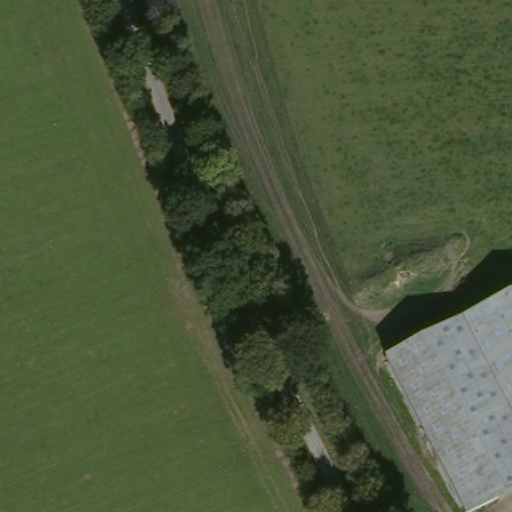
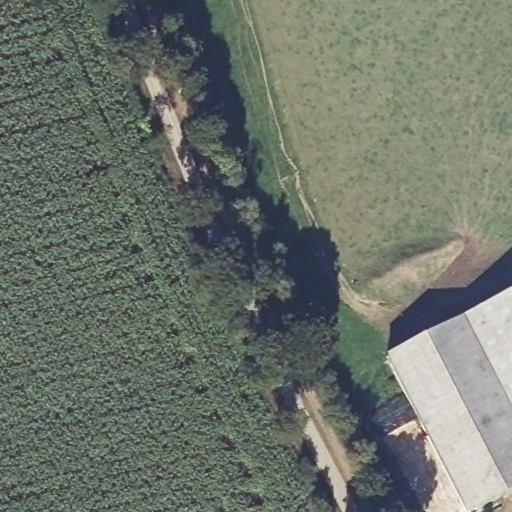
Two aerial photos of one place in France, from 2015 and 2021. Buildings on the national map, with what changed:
unchanged [(512,294),(512,492),(471,512),(465,512),(386,358),(512,294)]

